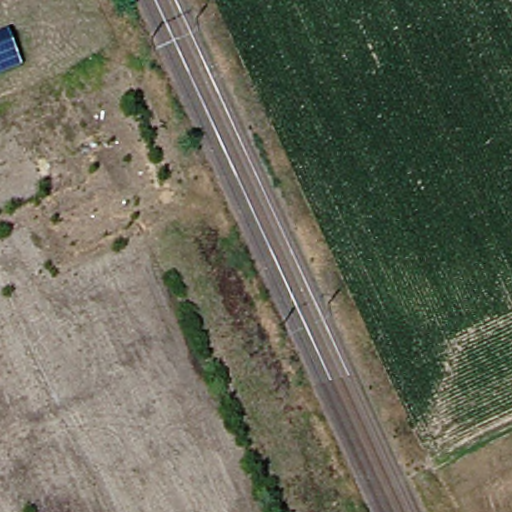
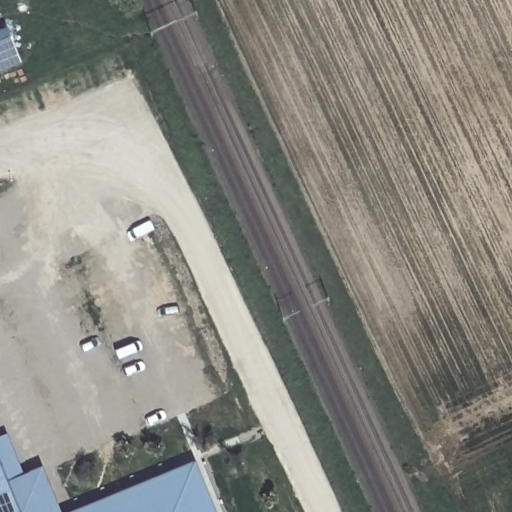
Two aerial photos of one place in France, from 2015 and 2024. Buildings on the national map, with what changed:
new [(22,64),(0,73),(0,33),(9,30),(22,64)]
new [(42,465),(61,512),(17,512),(0,470),(0,436),(6,434),(22,473),(42,465)]
new [(216,512),(66,512),(195,459),(216,512)]
new [(0,512),(0,471),(17,512),(0,512)]

